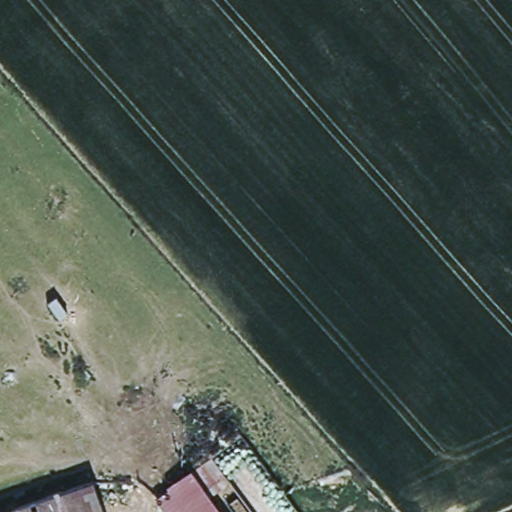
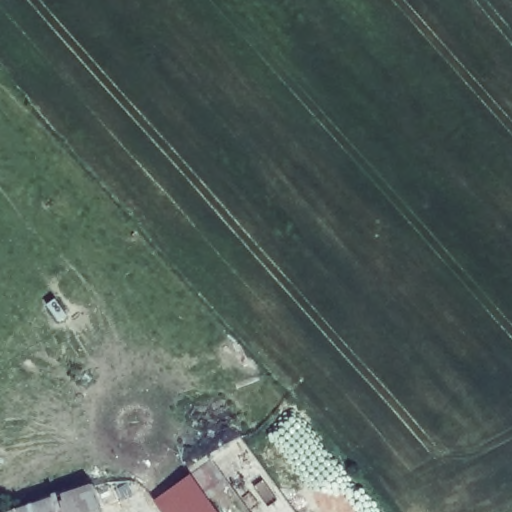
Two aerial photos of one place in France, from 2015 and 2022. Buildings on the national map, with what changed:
unchanged [(202,475),(221,512),(174,512),(165,495),(202,475)]
unchanged [(98,482),(107,512),(7,512),(98,482)]

